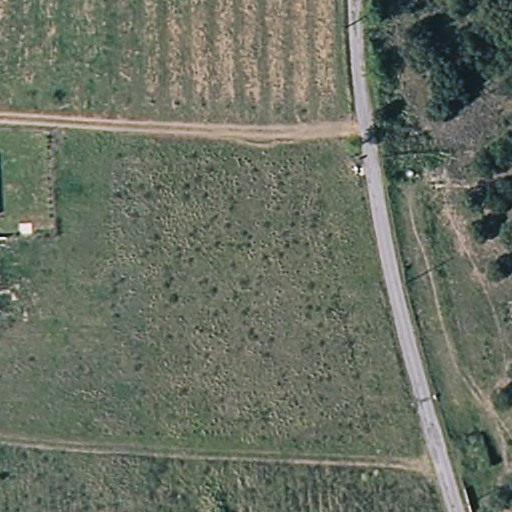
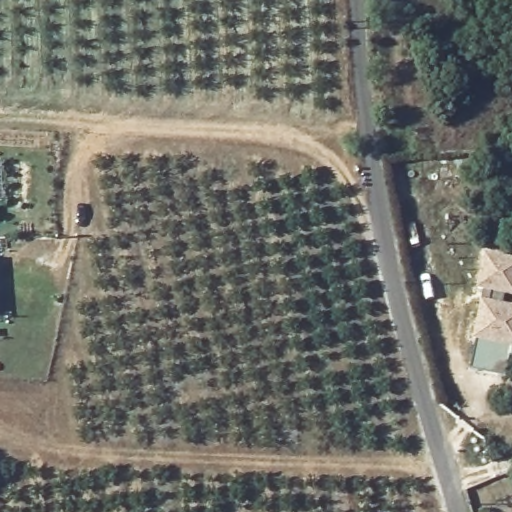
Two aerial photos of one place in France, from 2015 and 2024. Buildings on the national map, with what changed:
new [(512,305),(512,346),(473,339),(482,299),(484,290),(477,289),(485,253),(512,259),(512,296),(505,295),(504,303),(512,305)]

